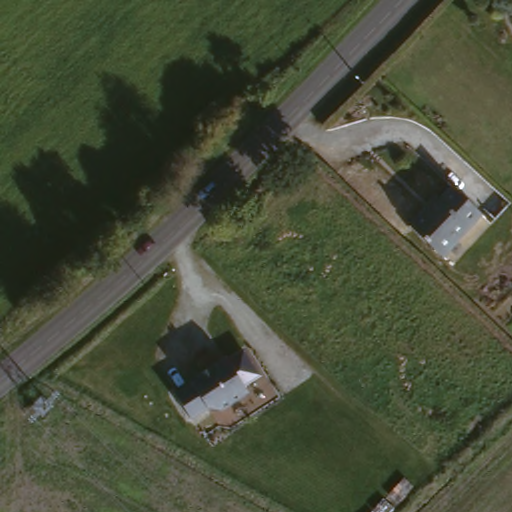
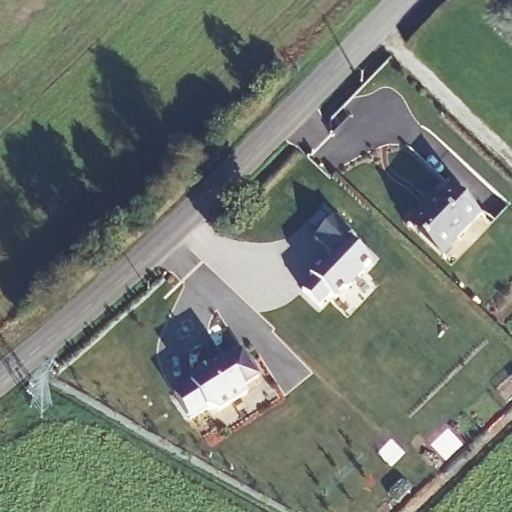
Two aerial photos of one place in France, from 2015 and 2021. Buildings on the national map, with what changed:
unchanged [(438,200),(441,204),(454,190),(485,220),(461,246),(457,242),(444,255),(413,227),(438,200)]
new [(315,281),(311,277),(332,255),(316,240),(336,220),(353,235),(348,240),(373,263),(364,273),(364,275),(349,290),(337,301),(331,296),(321,308),(304,293),(315,281)]
unchanged [(176,400),(246,358),(261,383),(248,391),(251,398),(213,421),(210,413),(189,425),(176,400)]

